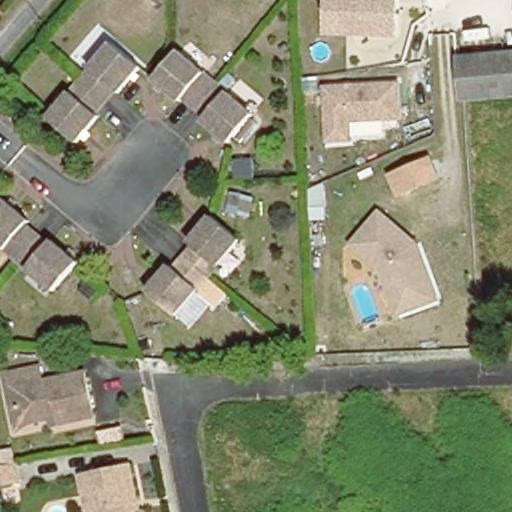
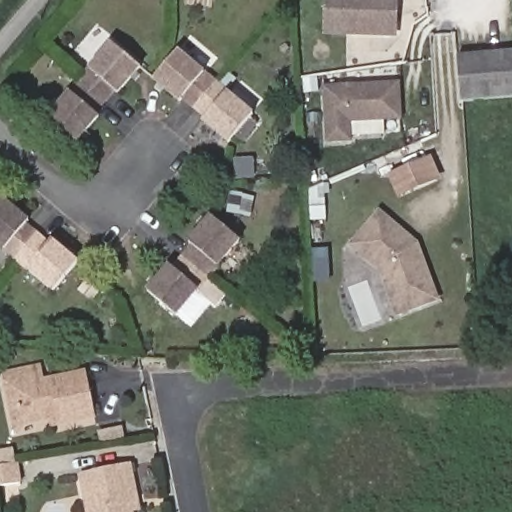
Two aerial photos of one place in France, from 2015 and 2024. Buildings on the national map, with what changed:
unchanged [(398,37),(326,36),(327,0),(399,0),(398,37)]
unchanged [(94,111),(98,114),(75,140),(48,117),(81,78),(113,42),(140,65),(117,91),(114,88),(105,98),(94,111)]
unchanged [(177,49),(215,82),(251,113),(227,141),(202,119),(205,116),(194,106),(182,96),(179,99),(168,89),(153,77),(166,62),(177,49)]
unchanged [(454,101),(450,57),(512,52),(512,96),(459,100),(454,101)]
unchanged [(403,121),(354,124),(355,144),(328,144),(325,85),(402,83),(403,121)]
unchanged [(399,199),(388,173),(432,155),(443,179),(399,199)]
unchanged [(53,290),(16,258),(0,245),(0,201),(3,198),(29,220),(26,223),(37,233),(49,243),(51,239),(78,261),(53,290)]
unchanged [(422,243),(443,302),(399,317),(381,271),(351,245),(383,209),(422,243)]
unchanged [(184,255),(194,244),(190,241),(212,215),(240,239),(208,276),(180,310),(176,315),(148,291),(170,265),(173,268),(177,263),(184,255)]
unchanged [(86,417),(53,423),(52,416),(27,421),(12,412),(7,386),(1,387),(0,381),(0,372),(33,366),(35,380),(78,372),(86,417)]
unchanged [(22,475),(0,478),(0,458),(19,454),(22,475)]
unchanged [(122,468),(130,504),(131,512),(80,512),(73,478),(122,468)]

